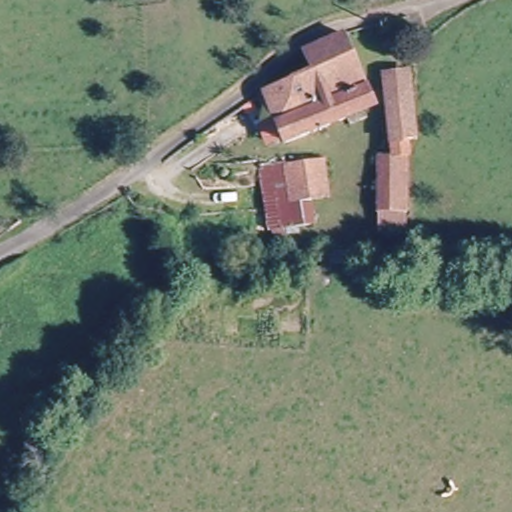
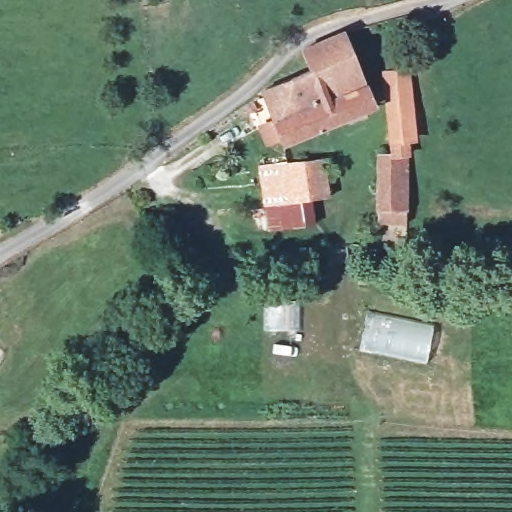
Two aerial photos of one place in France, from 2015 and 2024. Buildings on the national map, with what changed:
unchanged [(309,66),(303,50),(340,31),(351,55),(346,61),(359,86),(363,84),(372,102),(289,143),(262,92),(309,66)]
unchanged [(403,94),(412,142),(402,147),(414,216),(384,209),(376,163),(390,158),(377,83),(399,77),(403,94)]
unchanged [(278,206),(267,169),(325,152),(334,190),(278,206)]
unchanged [(272,239),(264,212),(277,209),(285,235),(272,239)]
new [(265,300),(300,298),(301,329),(265,329),(265,300)]
new [(366,310),(435,323),(427,364),(359,350),(366,310)]

